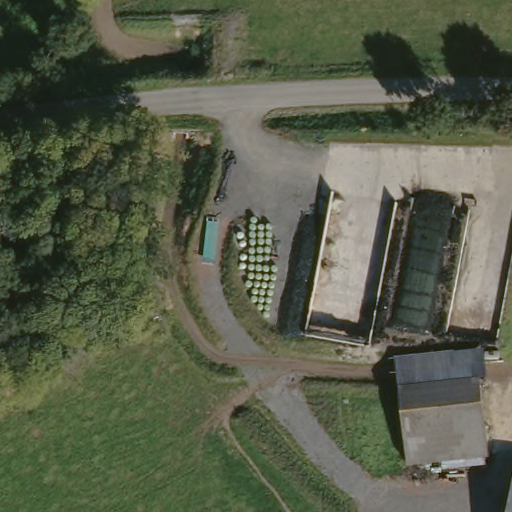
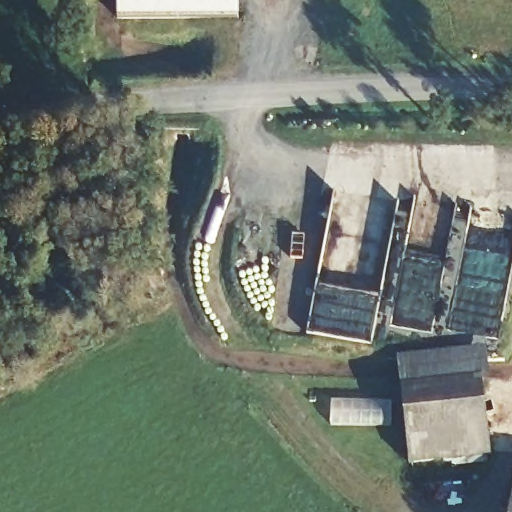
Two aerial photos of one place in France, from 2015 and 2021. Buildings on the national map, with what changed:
new [(238,0),(238,14),(117,14),(117,0),(238,0)]
unchanged [(417,463),(403,364),(486,353),(496,445),(496,450),(472,454),(417,463)]

